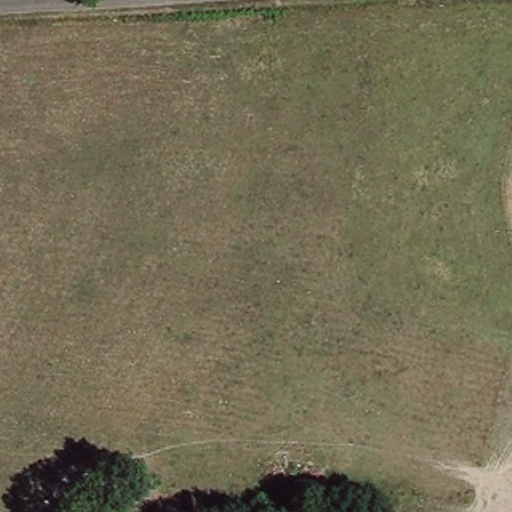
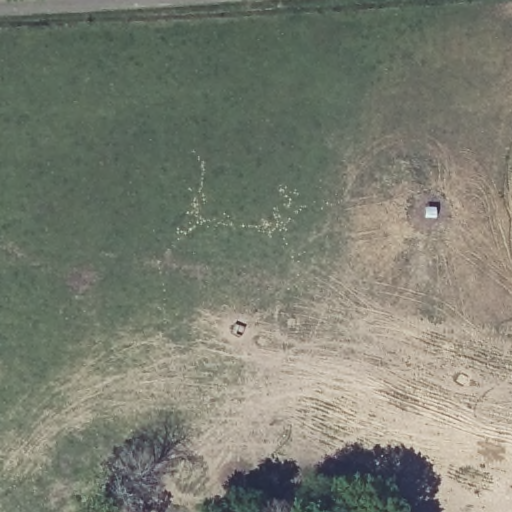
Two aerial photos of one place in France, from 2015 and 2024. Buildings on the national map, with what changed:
[]

